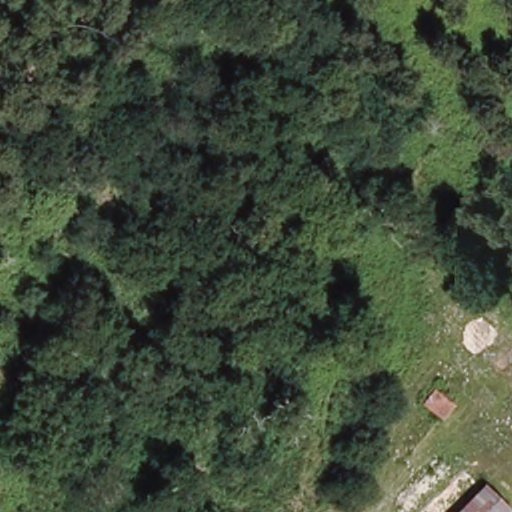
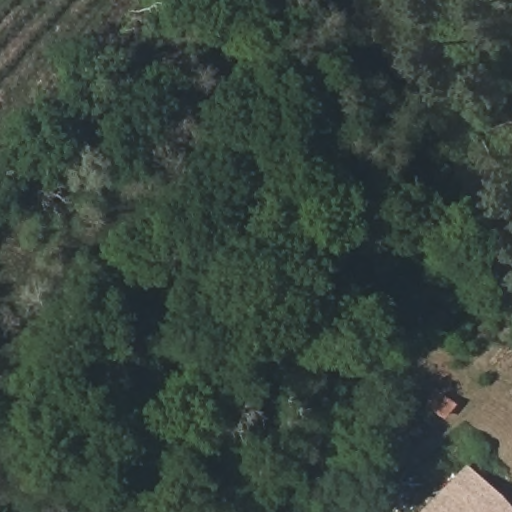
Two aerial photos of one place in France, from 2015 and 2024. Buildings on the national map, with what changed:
unchanged [(422,408),(439,387),(456,401),(438,422),(422,408)]
new [(492,490),(466,512),(418,512),(465,465),(492,490)]
unchanged [(512,507),(512,512),(466,512),(492,490),(509,509),(512,507)]

